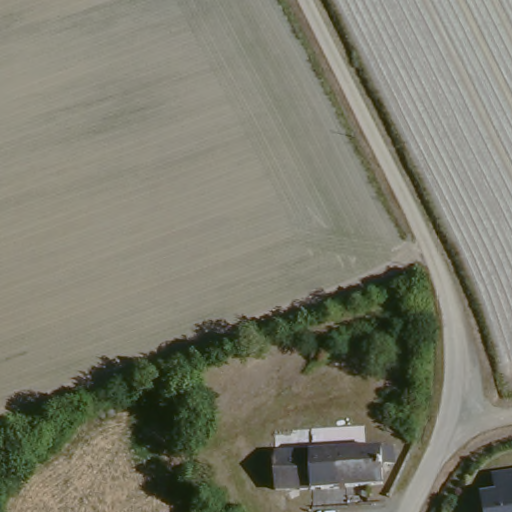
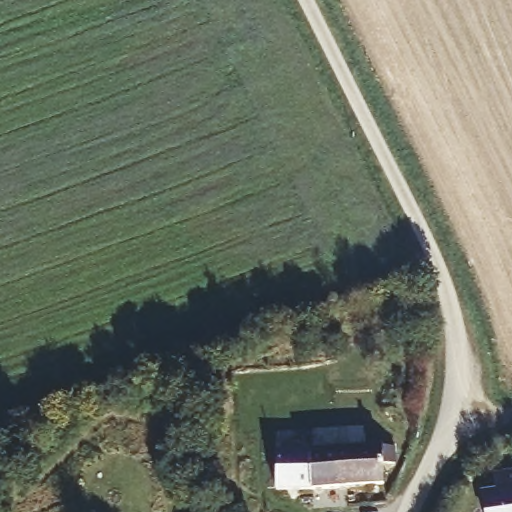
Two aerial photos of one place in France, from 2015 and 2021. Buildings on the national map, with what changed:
unchanged [(387,450),(387,460),(376,461),(377,480),(377,482),(271,493),(267,457),(386,445),(387,450)]
unchanged [(481,488),(492,487),(493,472),(512,471),(512,512),(484,512),(481,488)]

